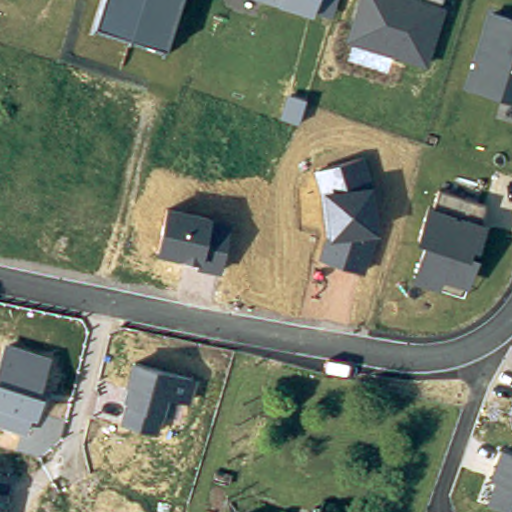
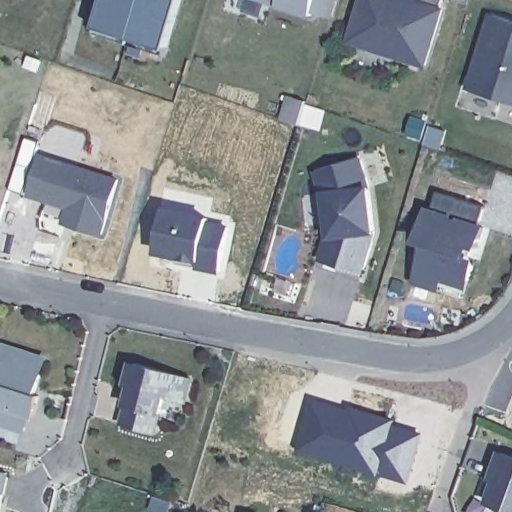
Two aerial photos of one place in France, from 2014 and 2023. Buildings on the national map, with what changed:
unchanged [(96,29),(105,0),(184,0),(170,50),(96,29)]
unchanged [(262,0),(340,0),(334,20),(262,0)]
unchanged [(427,69),(347,44),(360,0),(420,0),(446,8),(427,69)]
unchanged [(466,90),(489,14),(512,21),(512,104),(466,90)]
new [(121,176),(104,236),(65,226),(69,209),(28,197),(40,153),(121,176)]
unchanged [(375,188),(380,236),(367,276),(319,261),(327,237),(322,191),(314,170),(366,154),(375,188)]
unchanged [(489,206),(483,224),(487,225),(464,297),(412,282),(425,245),(416,242),(427,206),(434,208),(440,190),(489,206)]
unchanged [(222,275),(198,270),(200,262),(156,254),(165,205),(212,215),(210,225),(232,227),(222,275)]
unchanged [(27,434),(0,426),(0,355),(4,341),(50,354),(27,434)]
unchanged [(196,376),(190,405),(167,400),(160,433),(120,423),(134,363),(196,376)]
new [(409,480),(302,450),(317,398),(424,428),(409,480)]
unchanged [(512,454),(512,512),(508,512),(487,504),(496,480),(492,479),(501,450),(512,454)]
unchanged [(3,512),(0,512),(0,470),(12,472),(3,512)]

